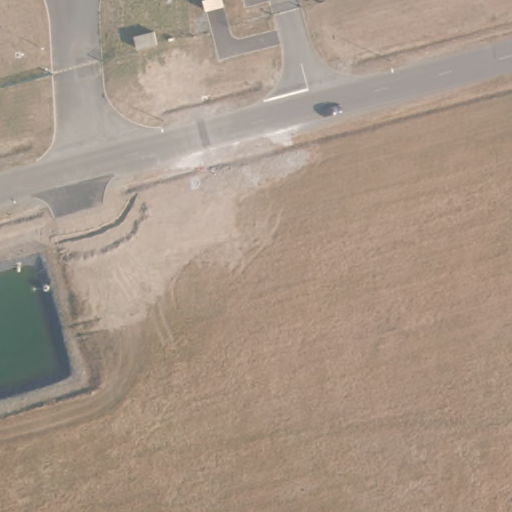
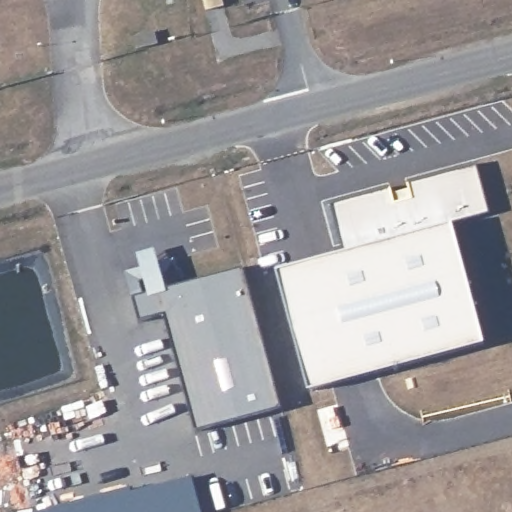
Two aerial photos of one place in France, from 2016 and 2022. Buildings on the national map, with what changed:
new [(307,391),(273,270),(342,250),(329,204),(389,187),(391,192),(407,188),(405,183),(474,164),(489,213),(449,224),(483,343),(307,391)]
unchanged [(162,314),(138,320),(124,271),(174,258),(183,283),(213,275),(243,268),(280,408),(195,431),(162,314)]
new [(131,494),(192,478),(201,512),(44,512),(131,490),(131,494)]

